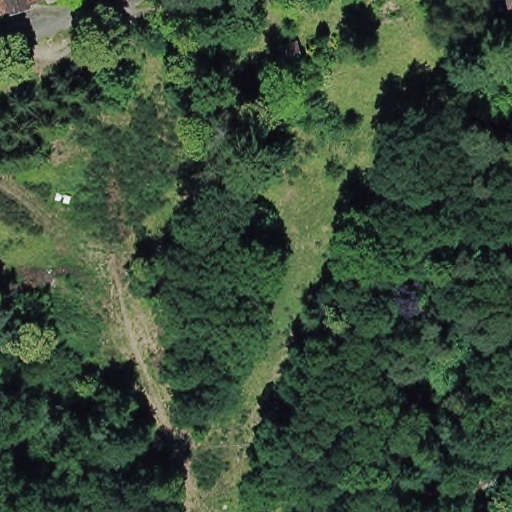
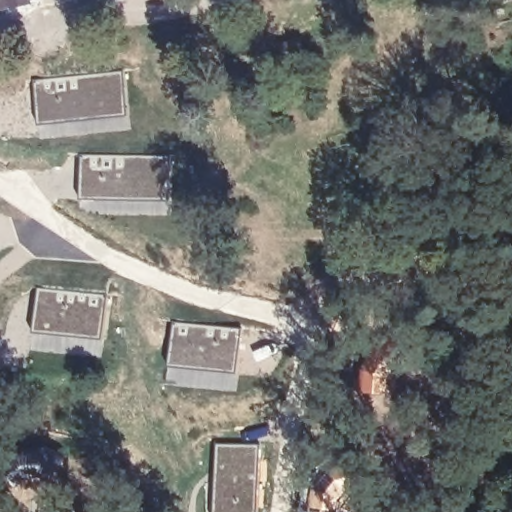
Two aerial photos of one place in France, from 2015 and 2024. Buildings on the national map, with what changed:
unchanged [(8,0),(29,0),(10,6),(8,0)]
new [(124,73),(127,118),(37,124),(34,81),(124,73)]
new [(172,155),(172,196),(77,196),(77,155),(172,155)]
new [(109,293),(104,338),(33,330),(37,286),(109,293)]
new [(244,330),(240,371),(170,364),(174,323),(244,330)]
new [(261,443),(259,512),(211,512),(213,443),(261,443)]

